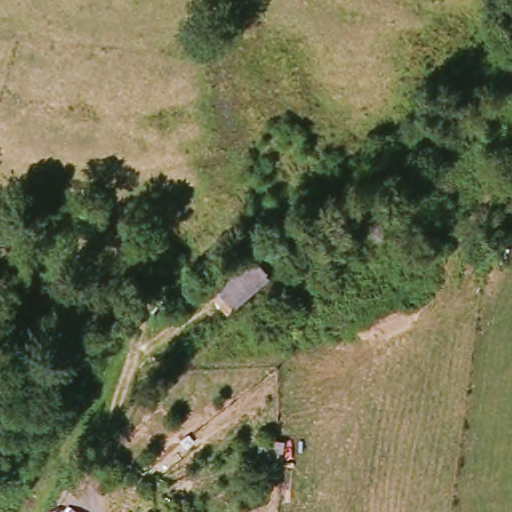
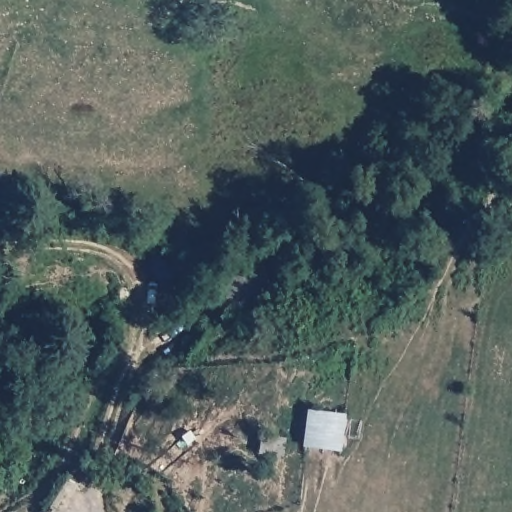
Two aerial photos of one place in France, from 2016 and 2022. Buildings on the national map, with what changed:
new [(347,416),(344,452),(304,445),(307,411),(347,416)]

